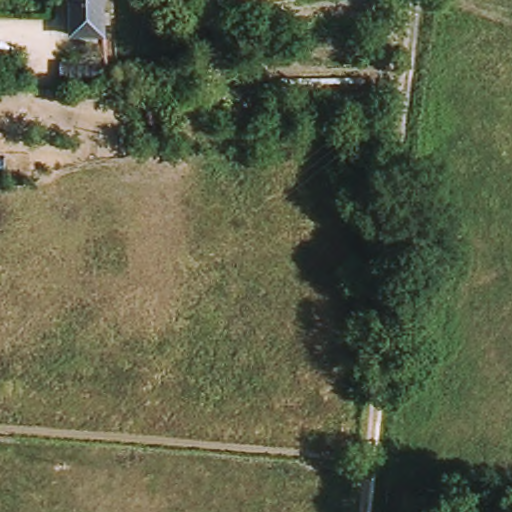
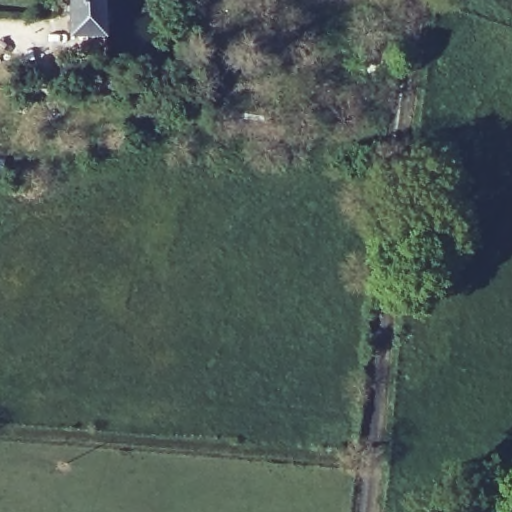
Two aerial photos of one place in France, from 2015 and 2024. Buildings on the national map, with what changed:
unchanged [(104,31),(71,32),(70,0),(102,0),(104,31)]

